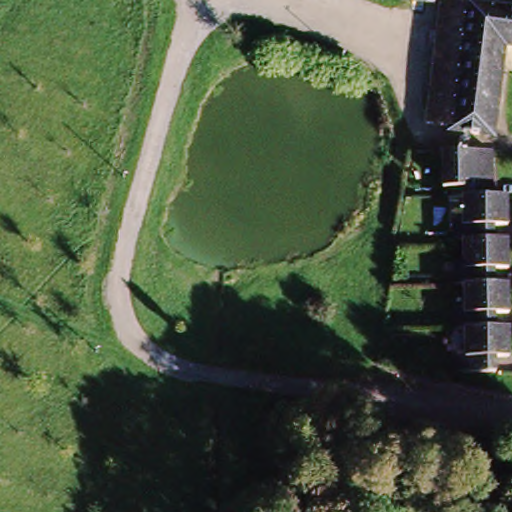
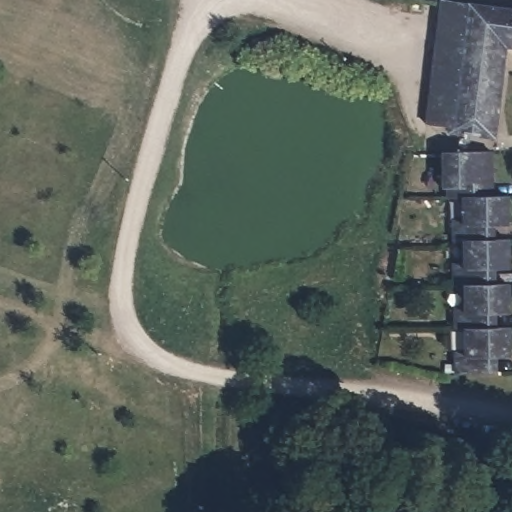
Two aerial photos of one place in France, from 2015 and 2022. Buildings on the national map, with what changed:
unchanged [(493,140),(448,134),(455,99),(458,70),(467,6),(512,12),(512,49),(507,48),(493,140)]
unchanged [(492,153),(498,153),(499,194),(510,194),(512,223),(500,224),(500,235),(512,237),(512,267),(501,267),(500,283),(512,283),(512,312),(501,314),(502,327),(512,327),(512,357),(502,357),(502,371),(460,373),(460,351),(467,351),(467,329),(459,329),(459,307),(467,307),(467,284),(458,284),(457,263),(466,263),(465,238),(457,238),(457,215),(465,215),(465,195),(456,196),(455,186),(450,186),(449,151),(477,153),(492,153)]

